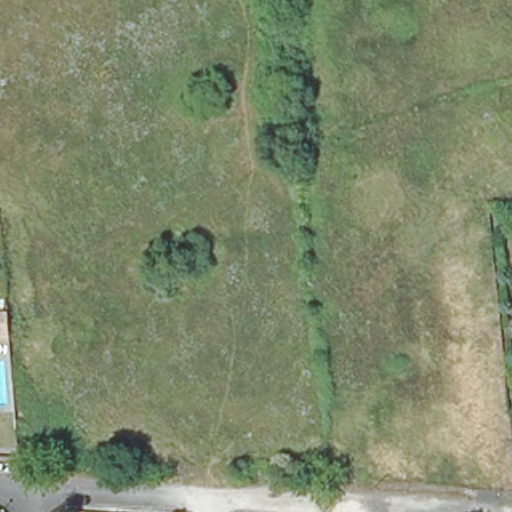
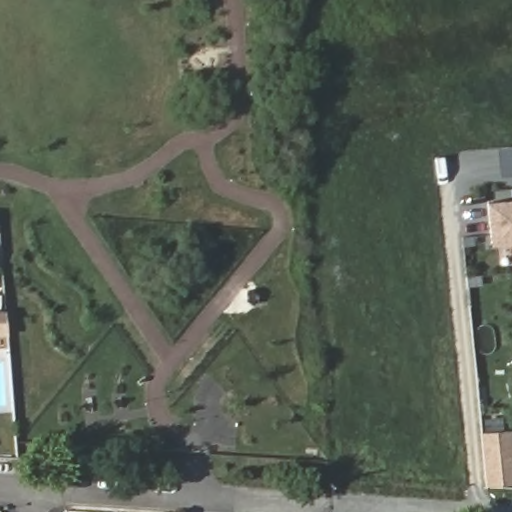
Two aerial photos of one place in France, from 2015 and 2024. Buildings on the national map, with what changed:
new [(487,207),(512,204),(512,244),(491,246),(487,207)]
unchanged [(5,331),(0,331),(0,312),(4,312),(5,331)]
new [(512,439),(512,490),(487,492),(481,437),(511,434),(512,439)]

